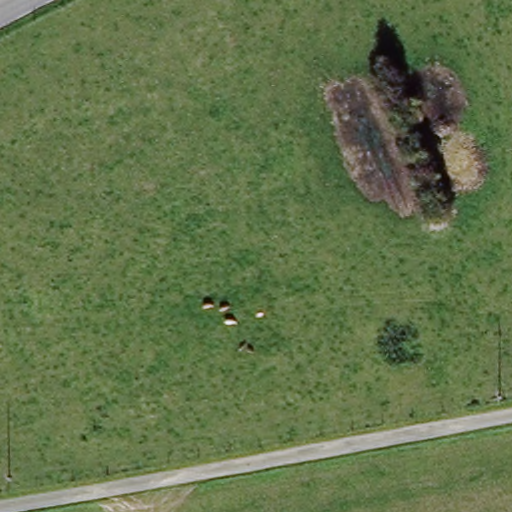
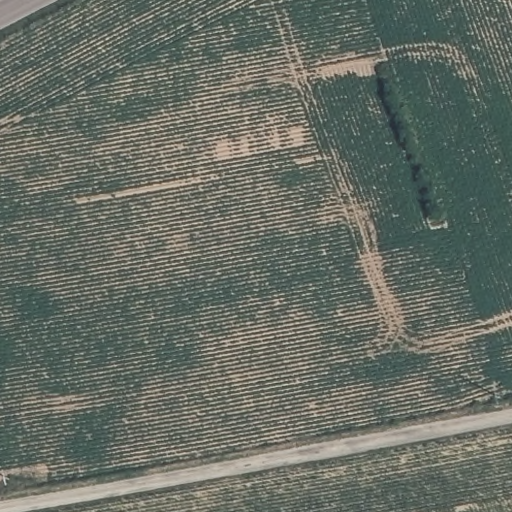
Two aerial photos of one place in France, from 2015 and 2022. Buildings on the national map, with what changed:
[]

